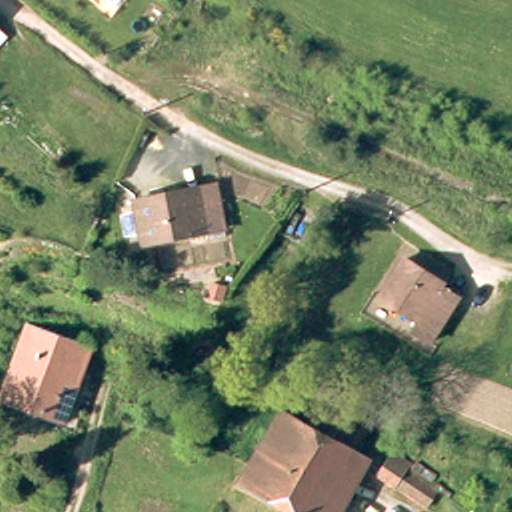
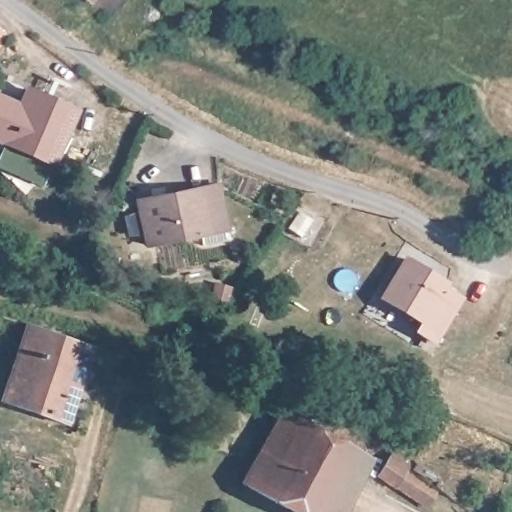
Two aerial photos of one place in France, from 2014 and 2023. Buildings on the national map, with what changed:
unchanged [(0,29),(12,41),(0,54),(0,29)]
new [(25,89),(72,110),(58,144),(35,134),(28,151),(0,140),(0,99),(17,106),(25,89)]
unchanged [(136,203),(201,195),(219,192),(220,199),(223,235),(206,239),(200,240),(145,249),(136,203)]
unchanged [(397,257),(440,282),(438,286),(457,297),(430,340),(410,328),(415,320),(377,297),(373,296),(381,282),(397,257)]
unchanged [(12,411),(13,405),(31,337),(33,330),(94,349),(76,428),(12,411)]
unchanged [(351,512),(294,512),(284,507),(245,489),(283,410),(342,440),(350,426),(373,437),(366,451),(378,457),(351,512)]
unchanged [(390,457),(401,462),(398,468),(413,475),(430,483),(420,501),(379,480),(390,457)]

